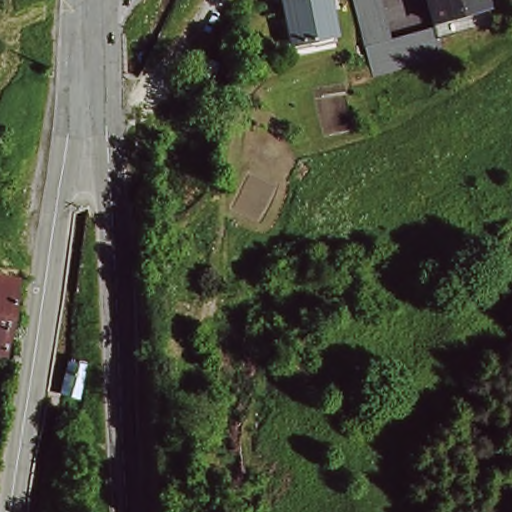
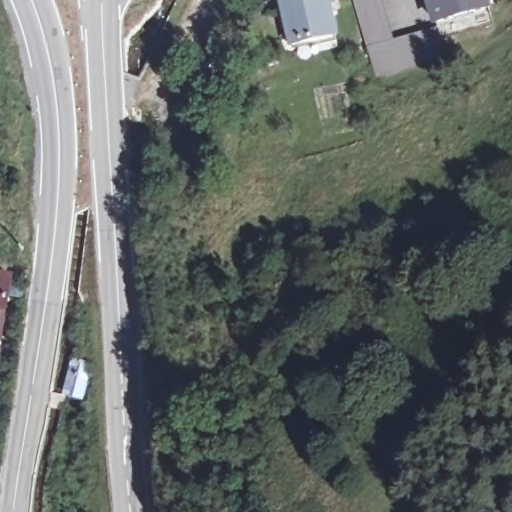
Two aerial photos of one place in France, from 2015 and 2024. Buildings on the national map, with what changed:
unchanged [(334,31),(292,40),(283,0),(328,0),(334,31)]
unchanged [(366,45),(354,0),(382,0),(393,37),(437,25),(440,37),(445,55),(402,67),(396,69),(373,75),(366,45)]
unchanged [(493,22),(440,37),(437,25),(429,0),(486,0),(493,22)]
unchanged [(222,62),(214,81),(205,76),(211,57),(222,62)]
unchanged [(215,92),(208,109),(191,102),(197,84),(215,92)]
unchanged [(0,338),(0,270),(26,272),(11,339),(0,338)]

